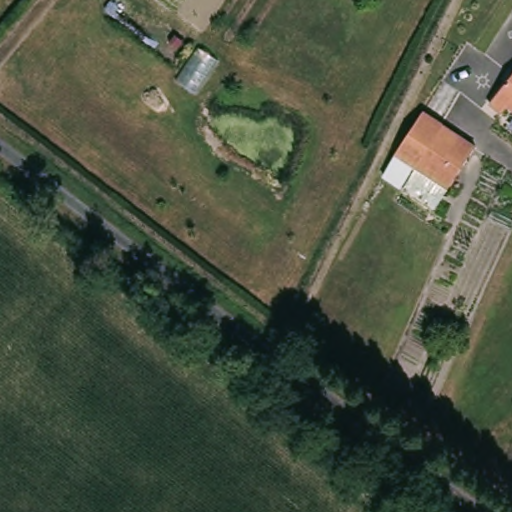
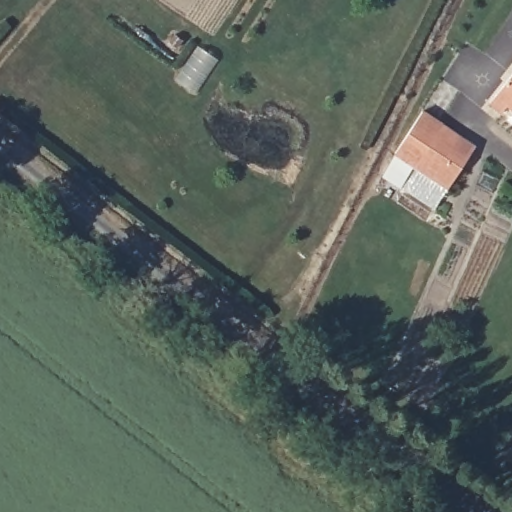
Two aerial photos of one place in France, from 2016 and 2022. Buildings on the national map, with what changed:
unchanged [(511,104),(506,110),(491,100),(512,73),(512,104),(511,104)]
unchanged [(476,144),(451,190),(396,158),(419,114),(476,144)]

